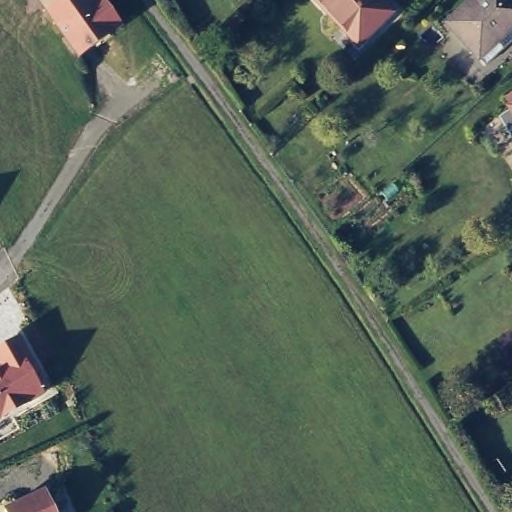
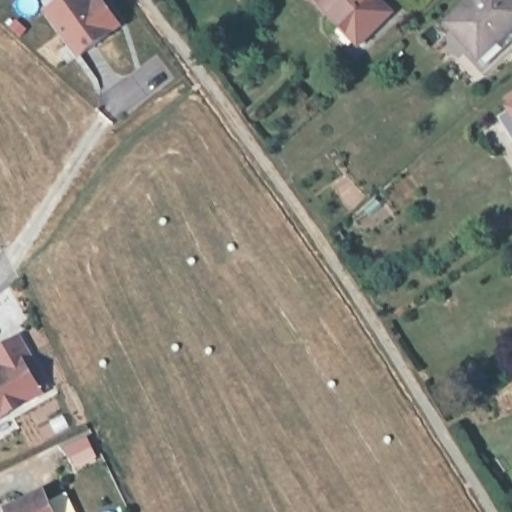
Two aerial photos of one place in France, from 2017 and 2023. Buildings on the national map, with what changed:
unchanged [(80,59),(45,11),(58,0),(92,0),(93,1),(94,0),(103,0),(122,29),(80,59)]
unchanged [(383,5),(353,34),(321,0),(379,0),(383,5)]
unchanged [(462,0),(505,0),(512,7),(512,32),(475,66),(437,23),(462,0)]
unchanged [(503,112),(512,107),(512,127),(503,112)]
unchanged [(0,368),(0,345),(18,335),(40,371),(34,375),(43,393),(0,419),(0,369),(0,368)]
unchanged [(5,512),(2,507),(43,489),(54,512),(5,512)]

